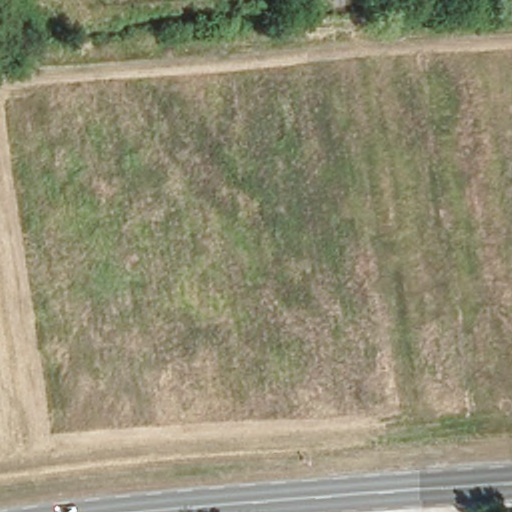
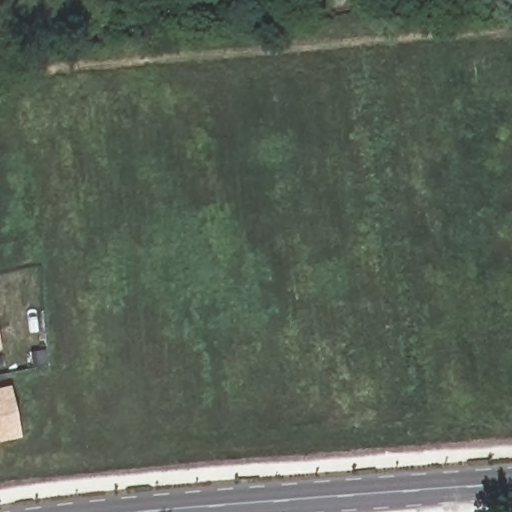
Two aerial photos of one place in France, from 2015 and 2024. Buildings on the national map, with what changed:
new [(21,437),(0,441),(0,387),(10,385),(21,437)]

